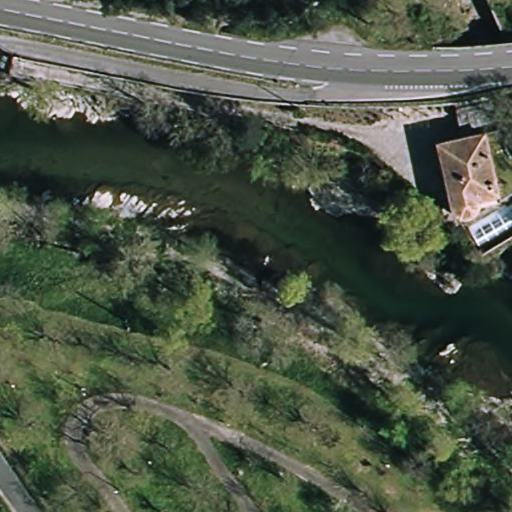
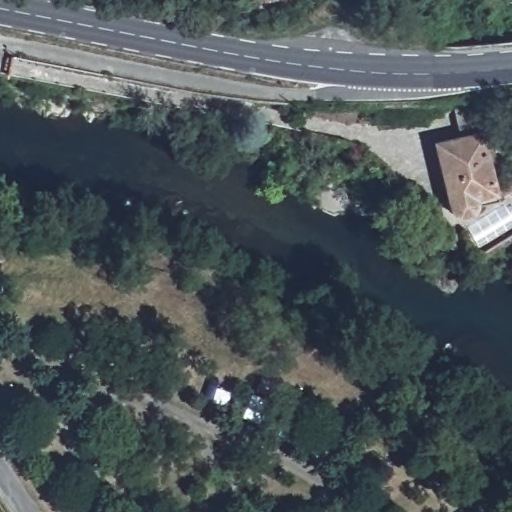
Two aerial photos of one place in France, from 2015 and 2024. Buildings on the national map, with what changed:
unchanged [(488,138),(493,202),(477,205),(477,208),(475,215),(466,218),(457,217),(450,210),(441,150),(467,145),(461,112),(496,107),(512,134),(512,135),(488,138)]

